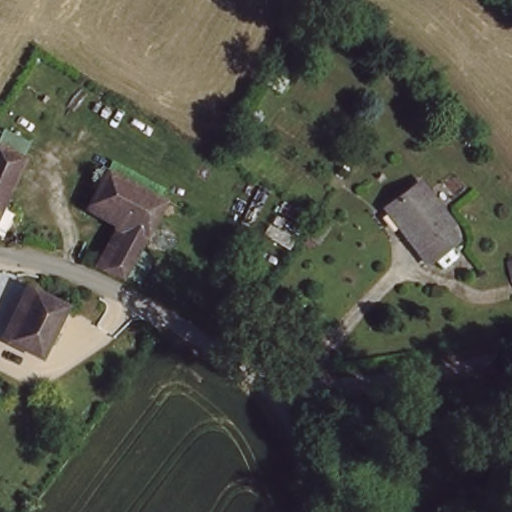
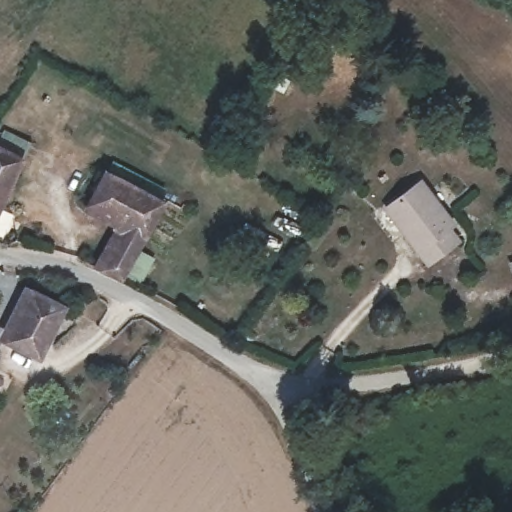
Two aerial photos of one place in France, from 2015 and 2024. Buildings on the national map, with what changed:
unchanged [(273,55),(293,66),(286,80),(265,70),(273,55)]
unchanged [(20,169),(0,204),(0,160),(20,169)]
unchanged [(164,200),(120,274),(97,259),(109,239),(77,220),(90,201),(108,170),(164,200)]
unchanged [(453,214),(447,219),(460,232),(430,257),(409,232),(385,204),(393,197),(419,175),(453,214)]
unchanged [(334,207),(321,229),(308,219),(321,199),(334,207)]
unchanged [(512,264),(512,265),(511,264),(512,264)]
unchanged [(59,308),(35,358),(0,342),(24,291),(59,308)]

